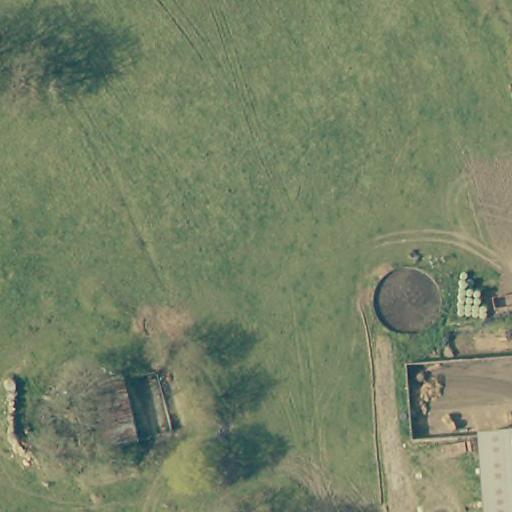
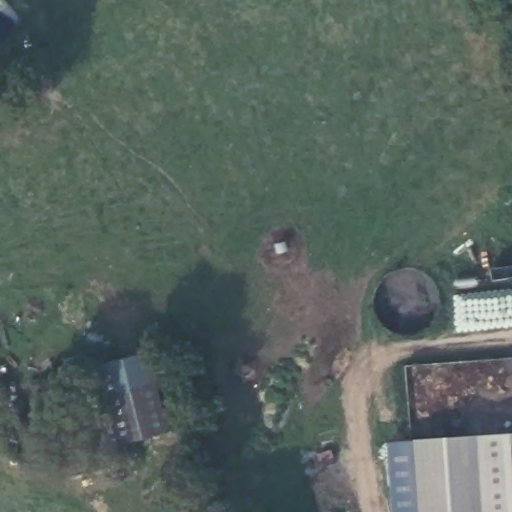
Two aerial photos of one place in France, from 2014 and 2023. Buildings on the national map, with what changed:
unchanged [(101,450),(87,385),(124,379),(142,445),(101,450)]
unchanged [(479,512),(475,430),(512,428),(512,512),(479,512)]
new [(420,512),(415,440),(476,436),(479,512),(420,512)]

